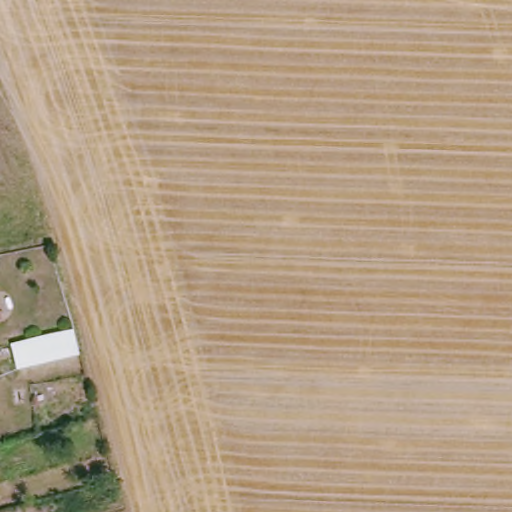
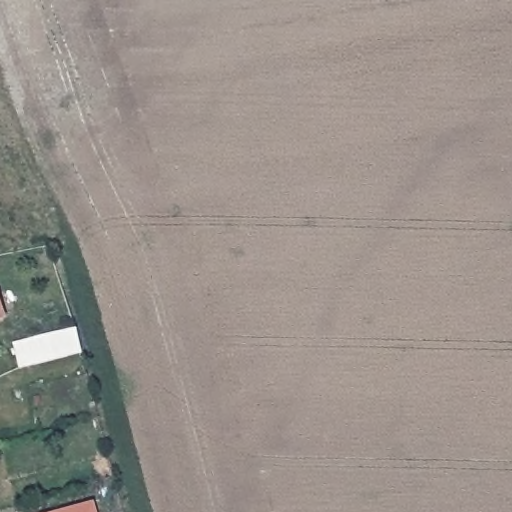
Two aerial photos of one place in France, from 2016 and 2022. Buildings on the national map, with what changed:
unchanged [(2,320),(0,321),(0,315),(2,320)]
unchanged [(19,367),(10,343),(76,327),(80,353),(19,367)]
new [(91,503),(94,512),(50,512),(91,503)]

